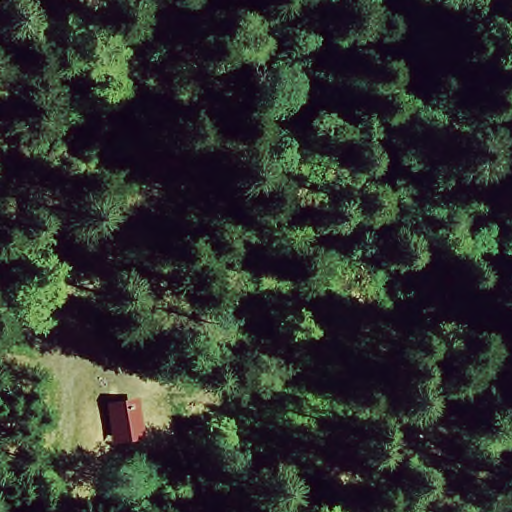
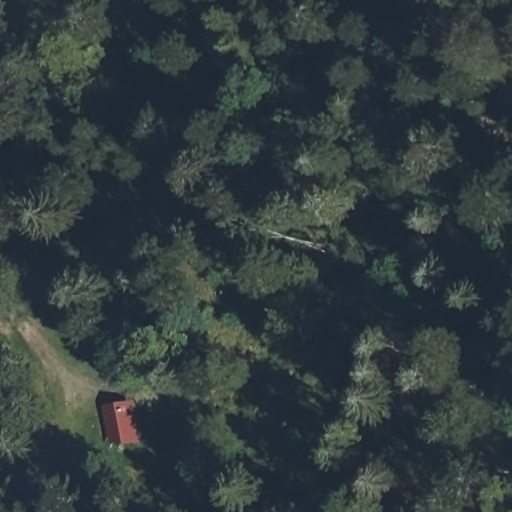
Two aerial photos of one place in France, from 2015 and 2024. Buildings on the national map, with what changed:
unchanged [(139,402),(148,441),(113,451),(102,406),(139,402)]

